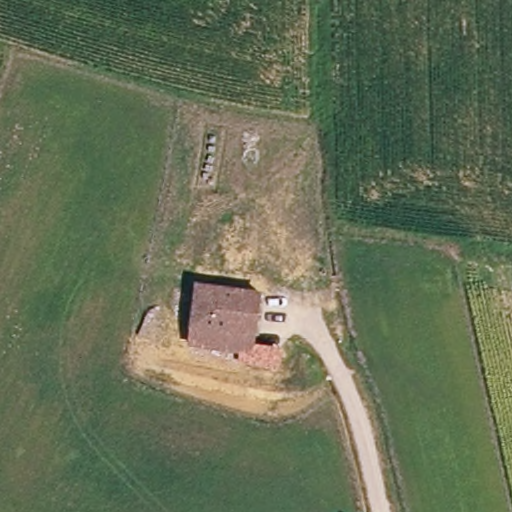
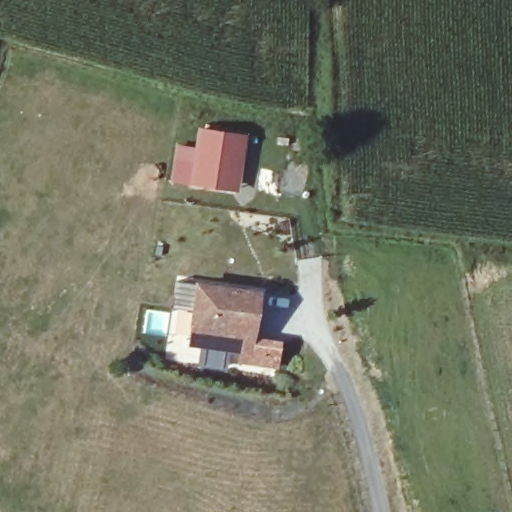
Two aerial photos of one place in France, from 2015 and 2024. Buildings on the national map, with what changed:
new [(248,134),(240,194),(190,188),(198,127),(248,134)]
unchanged [(279,363),(241,360),(241,350),(223,348),(187,347),(195,289),(257,295),(250,350),(280,352),(279,363)]

